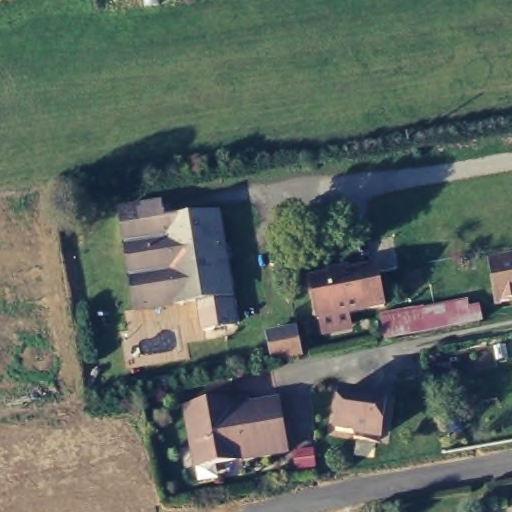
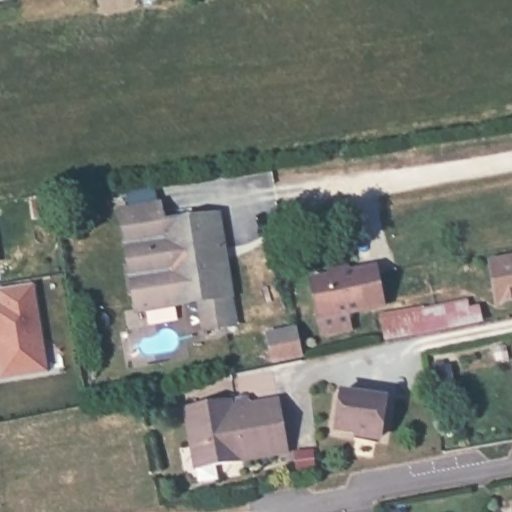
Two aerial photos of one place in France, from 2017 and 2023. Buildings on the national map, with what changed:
unchanged [(160,200),(163,222),(217,213),(235,320),(200,326),(195,297),(133,307),(117,209),(160,200)]
unchanged [(485,262),(512,256),(512,299),(493,302),(485,262)]
unchanged [(308,275),(373,262),(375,271),(380,301),(315,313),(310,283),(308,275)]
new [(34,287),(48,372),(0,382),(0,307),(0,292),(34,287)]
unchanged [(465,302),(471,327),(382,342),(376,318),(465,302)]
unchanged [(272,366),(266,341),(292,335),(298,360),(272,366)]
unchanged [(388,391),(380,440),(332,430),(342,383),(388,391)]
unchanged [(287,455),(190,476),(177,412),(243,398),(245,406),(275,399),(287,455)]

